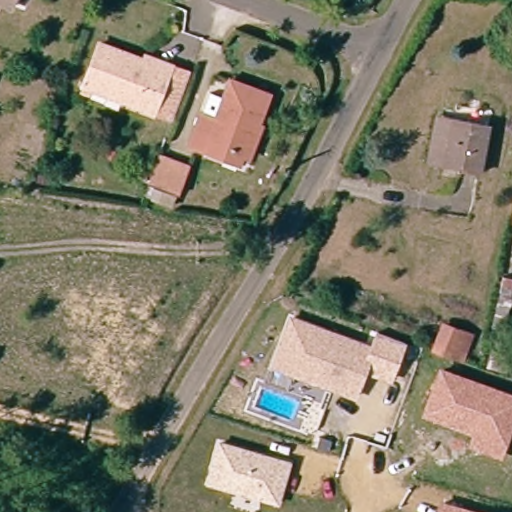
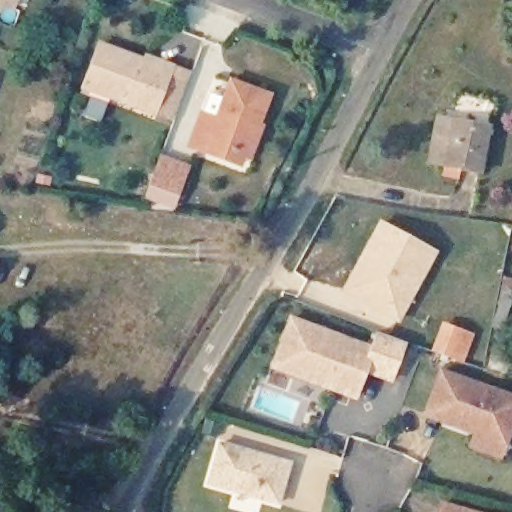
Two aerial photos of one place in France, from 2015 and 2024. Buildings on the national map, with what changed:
unchanged [(8,7),(0,4),(0,0),(12,0),(8,7)]
unchanged [(144,112),(108,97),(73,82),(77,74),(90,42),(132,60),(136,52),(144,56),(161,63),(159,68),(179,75),(165,115),(146,107),(144,112)]
unchanged [(207,154),(192,149),(205,114),(219,118),(233,81),(273,96),(261,129),(252,156),(244,153),(239,166),(207,154)]
unchanged [(479,168),(443,162),(428,159),(438,114),(452,117),(488,125),(479,168)]
unchanged [(159,156),(190,167),(177,197),(148,186),(159,156)]
new [(398,324),(340,292),(379,219),(439,251),(398,324)]
unchanged [(483,367),(506,254),(512,256),(512,285),(508,302),(512,302),(512,337),(506,372),(483,367)]
unchanged [(272,369),(291,316),(370,345),(377,331),(407,342),(393,383),(368,374),(356,402),(272,369)]
demolished [(438,317),(458,324),(449,349),(430,342),(438,317)]
new [(433,350),(442,322),(475,334),(466,361),(433,350)]
unchanged [(501,460),(467,448),(471,435),(422,417),(439,368),(512,395),(512,432),(501,460)]
unchanged [(290,463),(276,506),(208,486),(219,442),(290,463)]
unchanged [(478,512),(436,512),(439,500),(478,512)]

